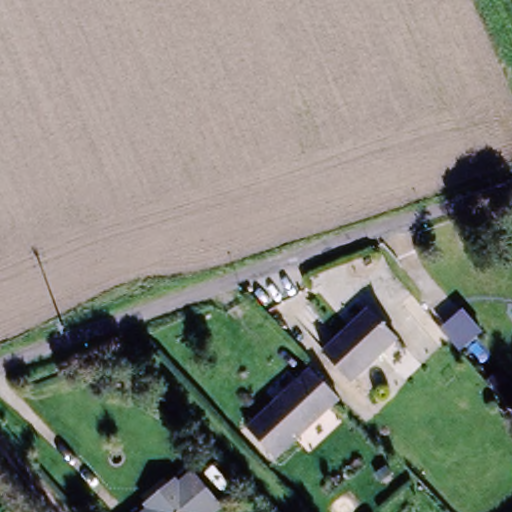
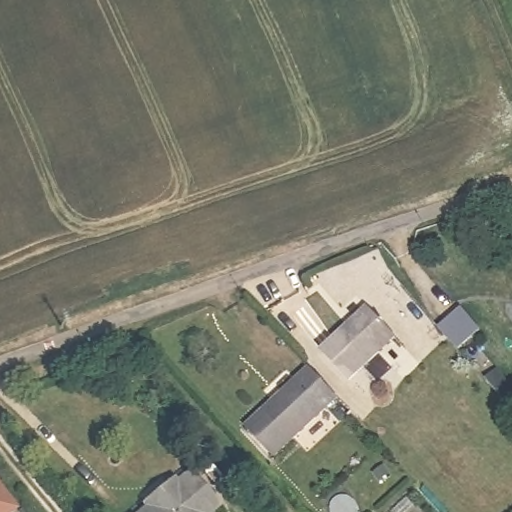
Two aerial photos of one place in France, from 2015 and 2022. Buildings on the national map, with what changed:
unchanged [(465,325),(443,343),(425,322),(447,304),(465,325)]
unchanged [(341,376),(327,362),(373,317),(401,345),(355,388),(341,376)]
unchanged [(482,358),(511,392),(496,407),(467,373),(482,358)]
unchanged [(308,374),(335,401),(277,457),(250,430),(308,374)]
unchanged [(146,510),(173,487),(177,492),(191,482),(212,512),(147,512),(146,510)]
new [(11,512),(0,512),(0,488),(16,508),(11,512)]

